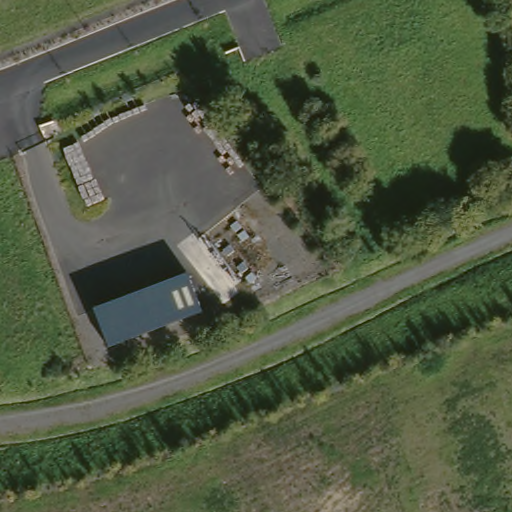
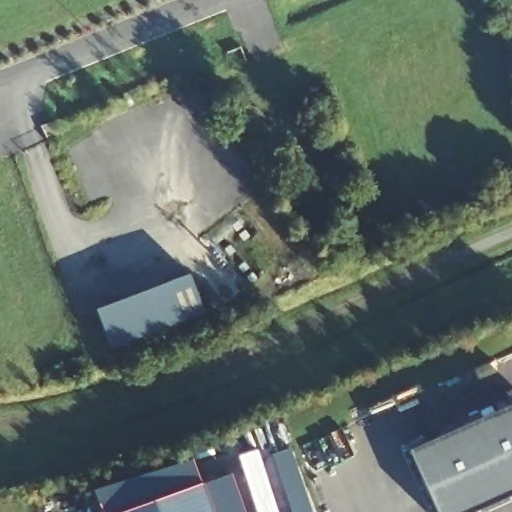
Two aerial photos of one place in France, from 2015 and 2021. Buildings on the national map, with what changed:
unchanged [(189,275),(204,314),(109,349),(95,310),(189,275)]
new [(472,512),(435,512),(408,451),(512,404),(512,494),(472,512)]
new [(203,484),(127,512),(107,512),(99,490),(192,456),(203,484)]
new [(247,512),(215,512),(205,483),(233,473),(247,512)]
new [(205,483),(215,512),(127,512),(203,484),(205,483)]

